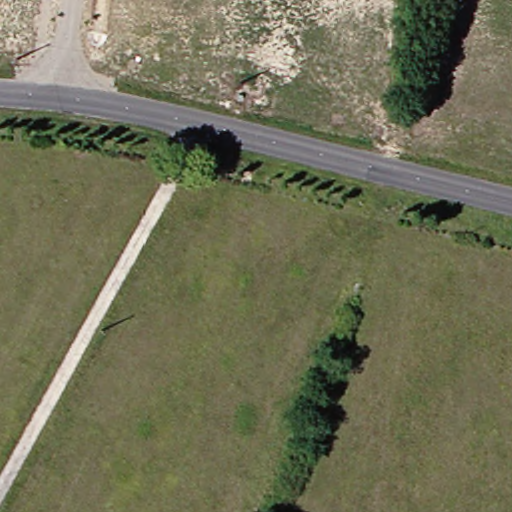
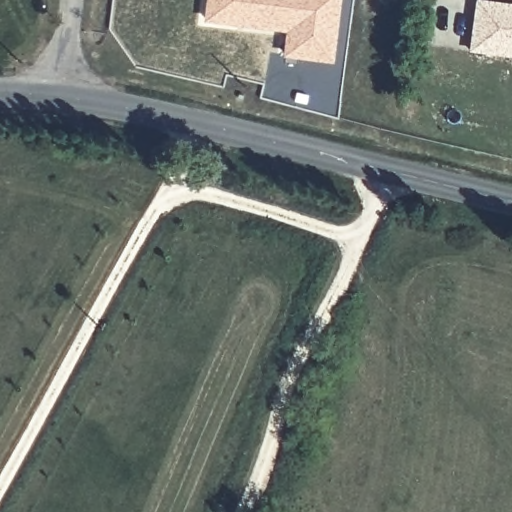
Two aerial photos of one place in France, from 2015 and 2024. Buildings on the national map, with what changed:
new [(285,32),(202,22),(205,0),(341,0),(332,64),(282,57),(285,32)]
new [(468,55),(475,7),(512,11),(512,60),(468,55)]

